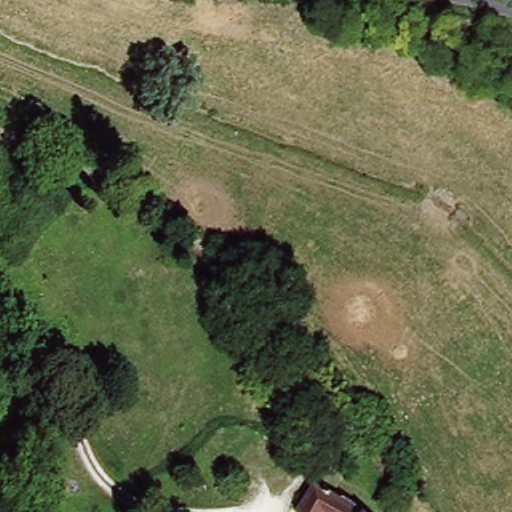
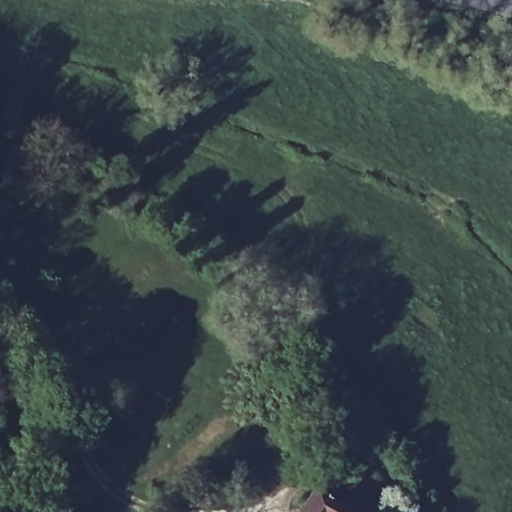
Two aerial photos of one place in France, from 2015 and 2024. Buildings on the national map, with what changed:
unchanged [(294,508),(314,480),(354,512),(300,512),(294,508)]

